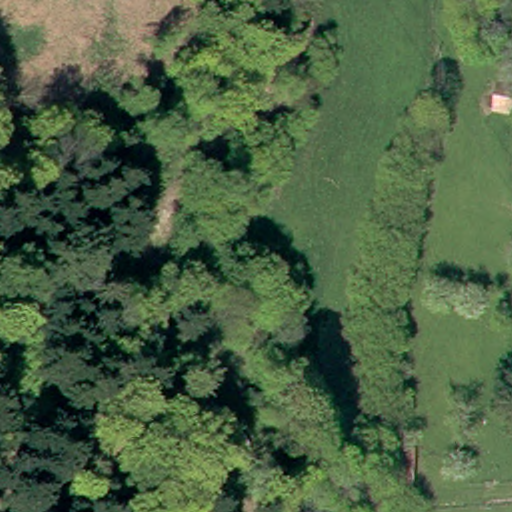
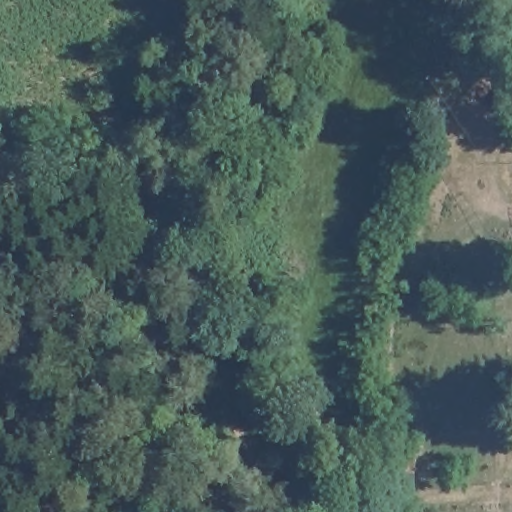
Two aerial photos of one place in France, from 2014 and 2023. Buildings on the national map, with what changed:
unchanged [(512,90),(512,123),(488,122),(494,87),(512,90)]

